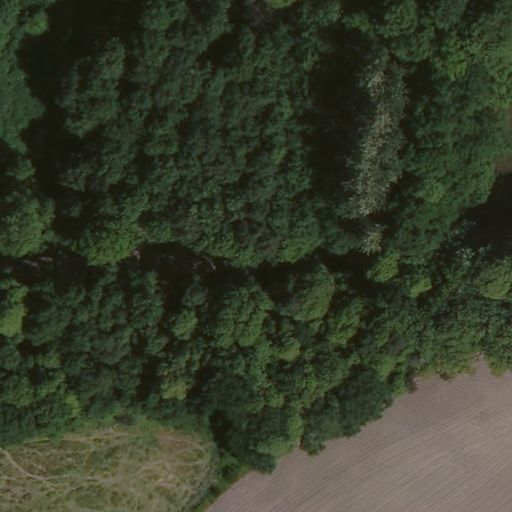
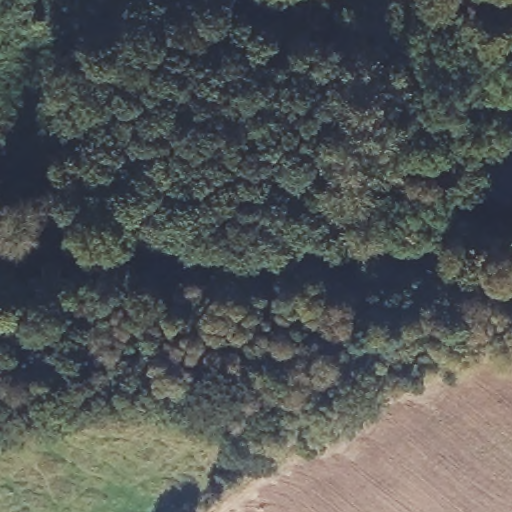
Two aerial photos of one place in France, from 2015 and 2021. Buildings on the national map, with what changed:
[]

